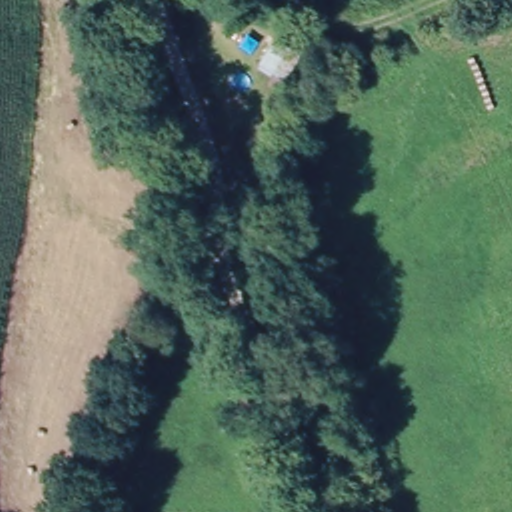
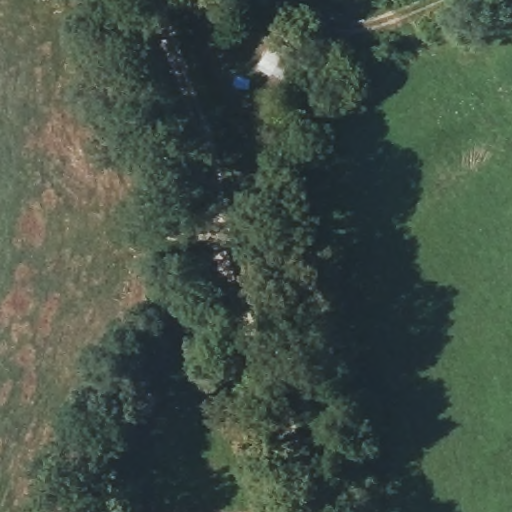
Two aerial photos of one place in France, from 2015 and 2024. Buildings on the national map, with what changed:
unchanged [(302,54),(285,82),(257,67),(276,40),(302,54)]

